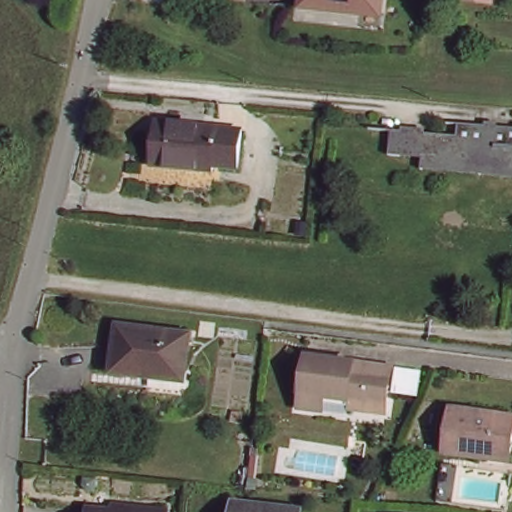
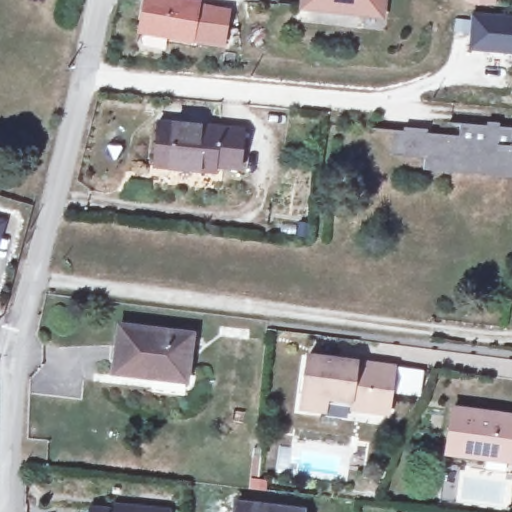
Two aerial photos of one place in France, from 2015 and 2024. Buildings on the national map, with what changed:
new [(198,0),(201,0),(198,13),(220,16),(215,40),(192,36),(192,42),(136,34),(142,0),(198,0)]
unchanged [(390,0),(388,10),(361,9),(361,16),(303,11),(305,0),(390,0)]
new [(465,0),(496,0),(495,4),(465,0)]
new [(512,16),(512,64),(510,64),(511,54),(467,51),(470,14),(512,16)]
unchanged [(458,125),(512,130),(512,179),(423,172),(423,161),(388,160),(390,131),(457,137),(458,125)]
unchanged [(238,164),(237,179),(155,171),(156,155),(159,131),(240,140),(238,164)]
new [(5,221),(0,240),(0,220),(5,221)]
unchanged [(116,332),(190,341),(182,386),(110,376),(116,332)]
unchanged [(391,375),(386,422),(365,422),(366,413),(329,410),(327,425),(300,421),(306,365),(391,375)]
unchanged [(512,457),(482,453),(480,463),(447,458),(452,413),(512,422),(512,457)]
unchanged [(299,510),(299,512),(237,512),(238,503),(299,510)]
unchanged [(131,507),(171,511),(171,512),(131,512),(131,507)]

